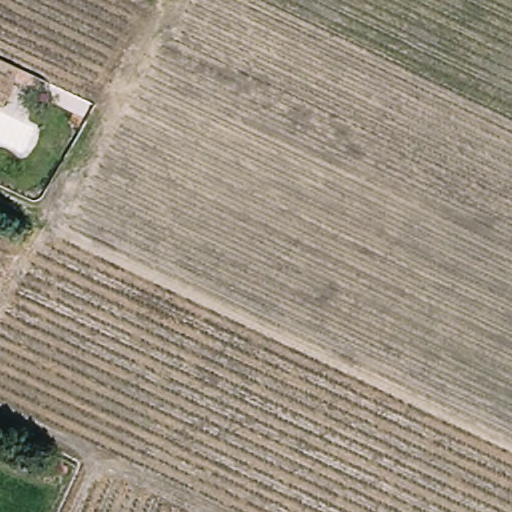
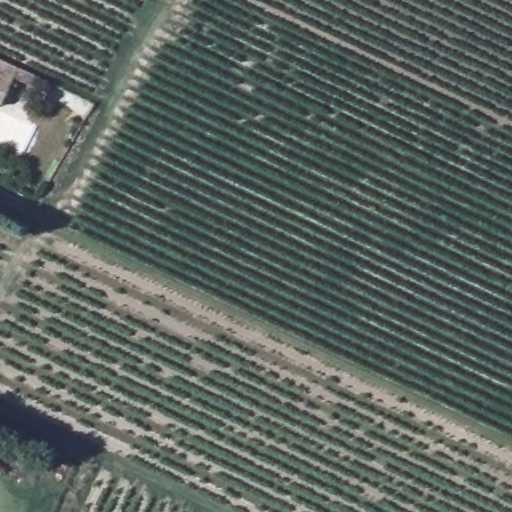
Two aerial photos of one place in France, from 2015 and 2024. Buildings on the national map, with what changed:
unchanged [(0,63),(19,73),(0,105),(0,63)]

